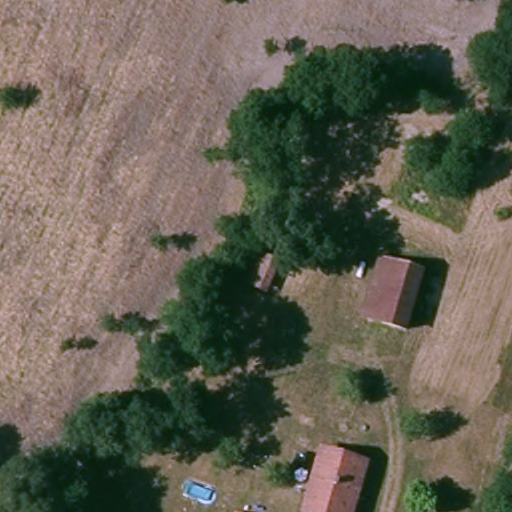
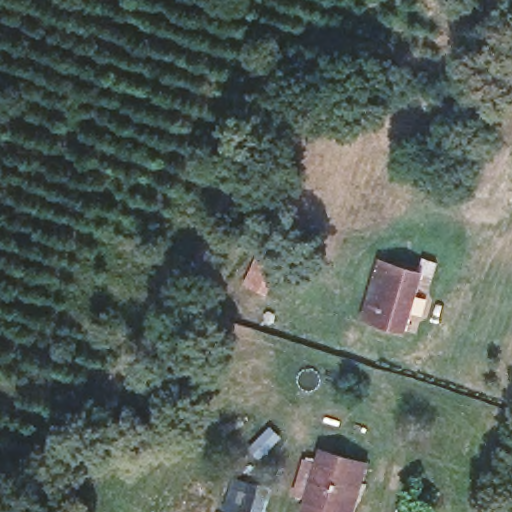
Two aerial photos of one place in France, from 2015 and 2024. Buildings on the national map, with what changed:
unchanged [(411,325),(378,314),(391,275),(394,268),(426,278),(411,325)]
unchanged [(331,452),(371,464),(354,512),(311,512),(331,452)]
new [(233,479),(269,487),(264,512),(226,512),(233,479)]

